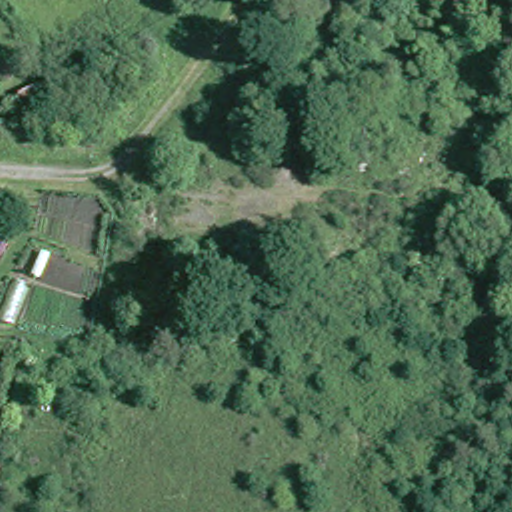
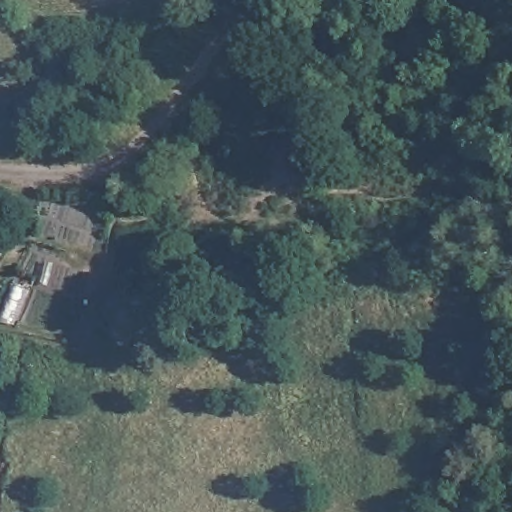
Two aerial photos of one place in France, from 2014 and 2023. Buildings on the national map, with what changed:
unchanged [(22,309),(0,291),(0,259),(35,286),(22,309)]

